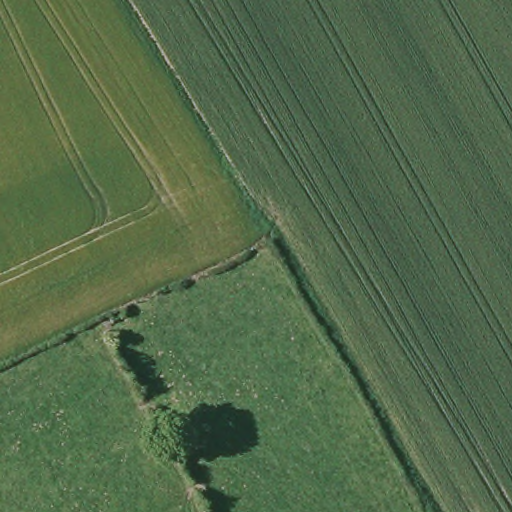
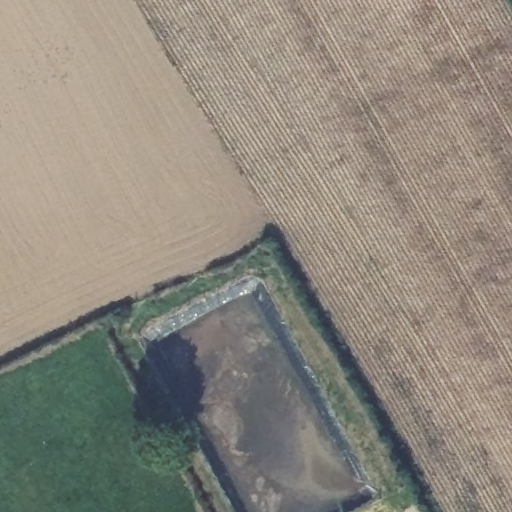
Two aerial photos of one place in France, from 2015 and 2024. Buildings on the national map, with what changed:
[]

